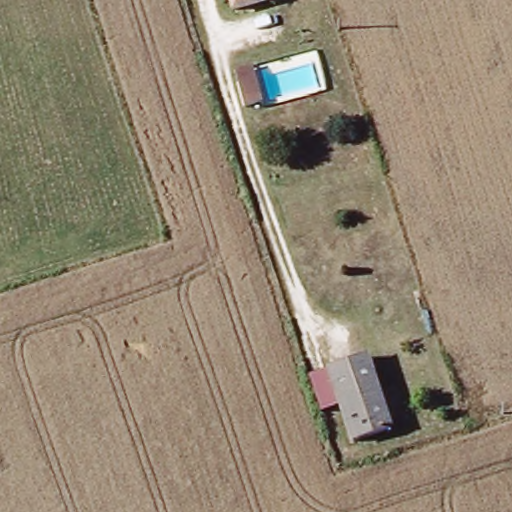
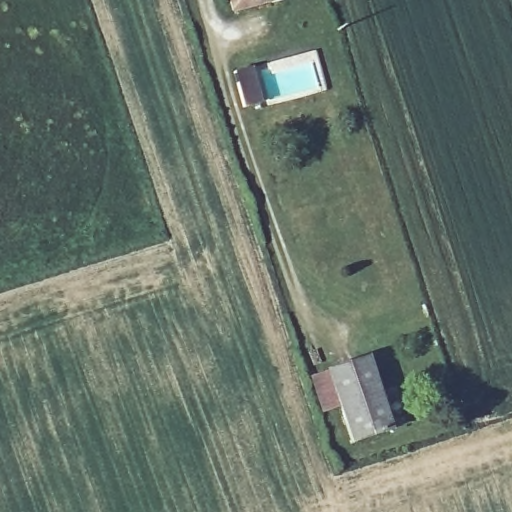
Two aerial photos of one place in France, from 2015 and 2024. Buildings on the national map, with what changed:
unchanged [(250,0),(232,6),(230,0),(250,0)]
unchanged [(329,369),(369,358),(390,428),(350,440),(329,369)]

